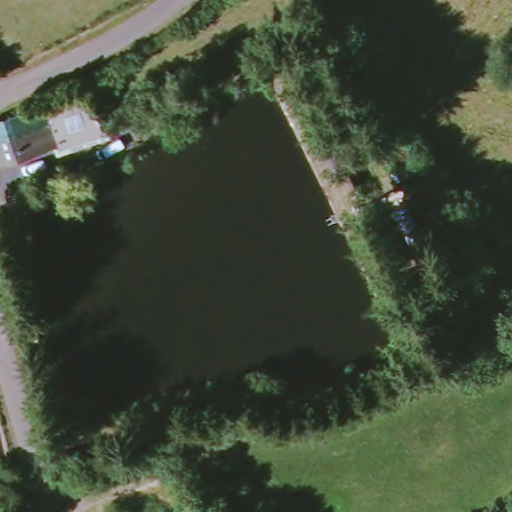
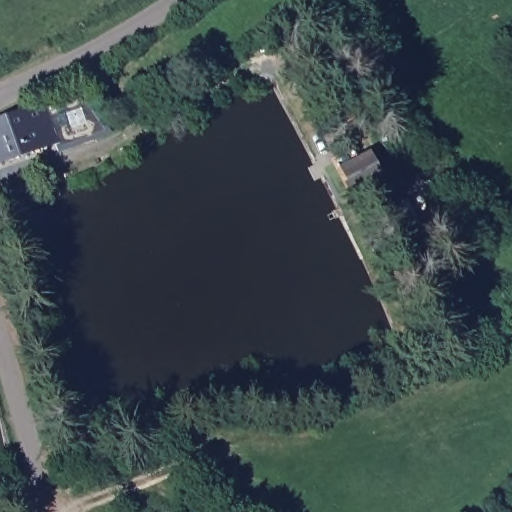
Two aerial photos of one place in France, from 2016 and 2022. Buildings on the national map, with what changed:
unchanged [(84,91),(110,133),(98,137),(62,151),(61,143),(52,117),(47,104),(84,91)]
unchanged [(0,166),(0,124),(22,114),(28,127),(52,117),(61,143),(0,166)]

